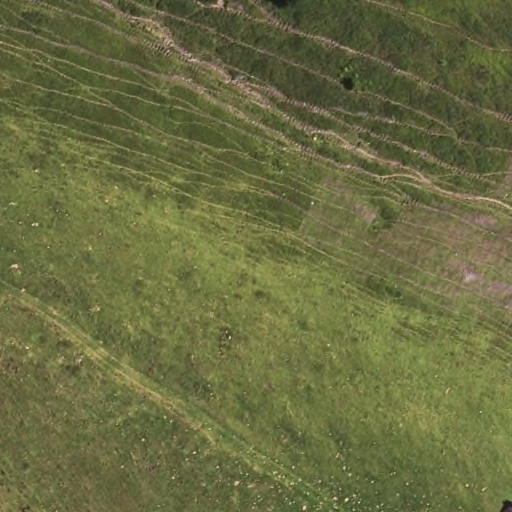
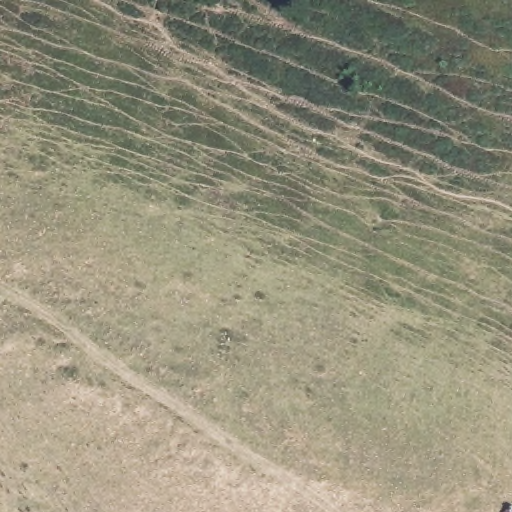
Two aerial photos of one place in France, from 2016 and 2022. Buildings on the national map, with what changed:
unchanged [(512,503),(512,512),(501,512),(511,502),(512,503)]

